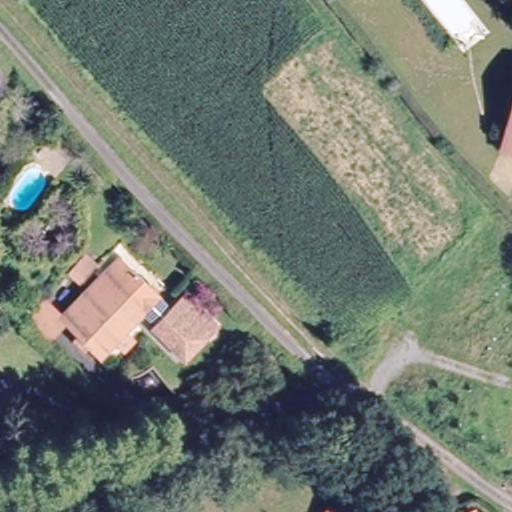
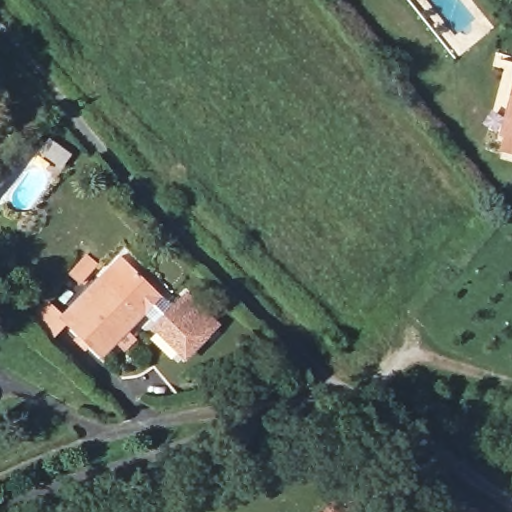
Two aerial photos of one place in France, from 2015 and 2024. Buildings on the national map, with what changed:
unchanged [(501,147),(505,130),(512,101),(512,149),(501,147)]
unchanged [(92,258),(102,269),(86,284),(77,275),(92,258)]
unchanged [(87,299),(127,260),(164,299),(106,358),(73,325),(92,304),(87,299)]
unchanged [(197,293),(225,321),(192,353),(164,325),(197,293)]
unchanged [(55,307),(72,324),(52,345),(34,327),(55,307)]
unchanged [(336,494),(354,512),(324,512),(321,508),(336,494)]
unchanged [(479,512),(476,512),(478,511),(479,512)]

